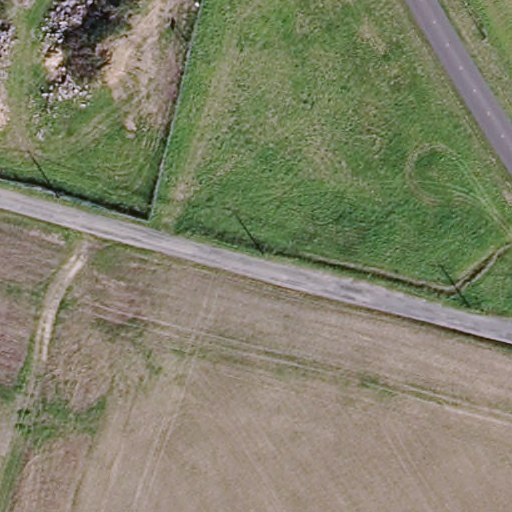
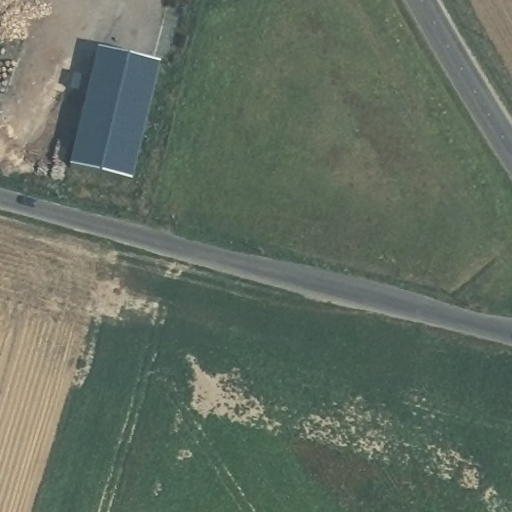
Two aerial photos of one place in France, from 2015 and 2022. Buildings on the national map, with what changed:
new [(72,168),(89,95),(72,91),(76,76),(92,81),(99,52),(161,65),(134,182),(72,168)]

